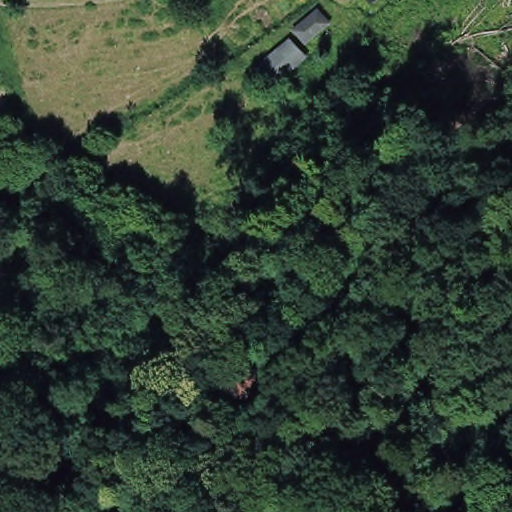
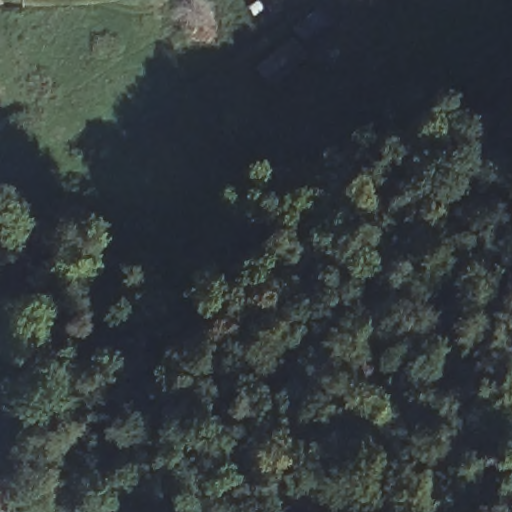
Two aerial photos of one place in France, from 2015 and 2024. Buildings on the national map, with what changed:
unchanged [(371,27),(365,22),(362,19),(376,4),(385,12),(371,27)]
unchanged [(264,32),(270,40),(257,50),(250,43),(264,32)]

